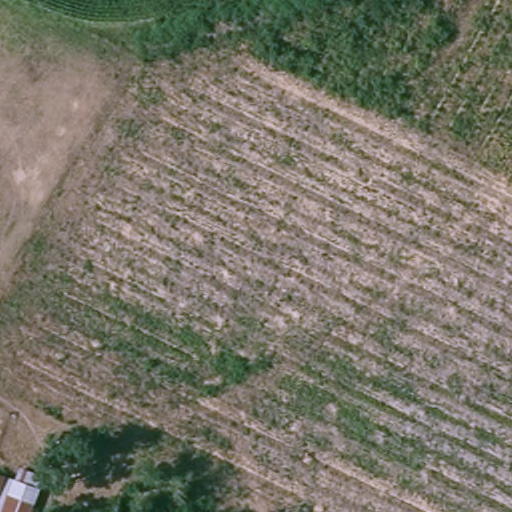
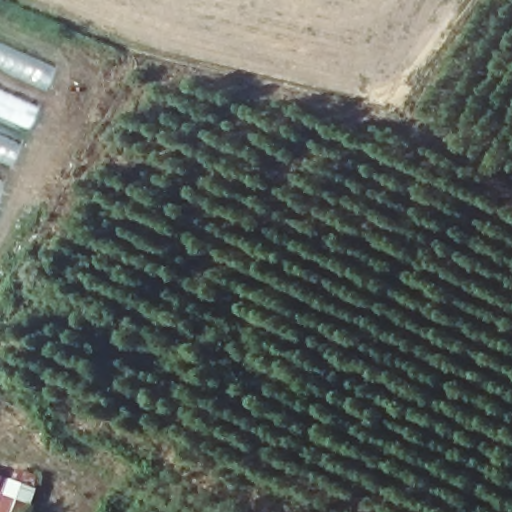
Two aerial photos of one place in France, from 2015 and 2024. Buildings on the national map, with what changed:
new [(41,90),(0,72),(0,44),(51,67),(41,90)]
new [(0,88),(36,104),(24,129),(0,119),(0,88)]
new [(6,166),(0,163),(0,134),(18,142),(6,166)]
new [(0,186),(0,176),(4,178),(0,186)]
unchanged [(18,468),(43,479),(30,512),(0,512),(0,475),(13,481),(18,468)]

